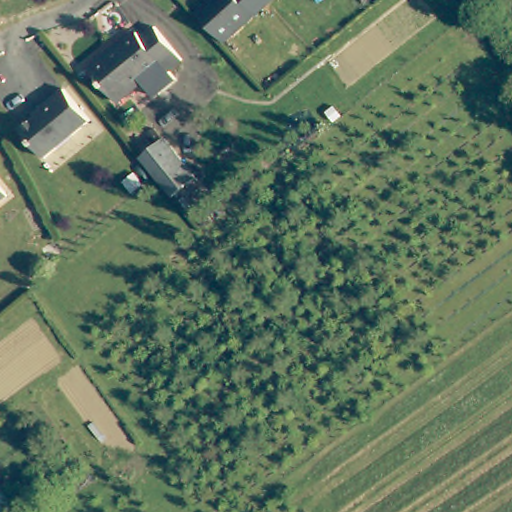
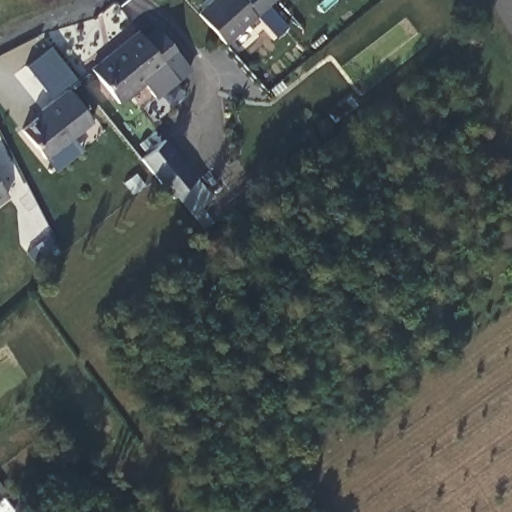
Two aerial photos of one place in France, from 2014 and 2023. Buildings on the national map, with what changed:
unchanged [(196,13),(212,0),(273,0),(222,43),(196,13)]
unchanged [(108,55),(139,31),(143,36),(156,27),(183,61),(169,71),(165,66),(116,101),(87,64),(105,52),(108,55)]
new [(50,98),(25,66),(50,46),(76,79),(65,87),(50,98)]
unchanged [(43,111),(39,106),(65,87),(89,118),(43,154),(23,128),(43,111)]
unchanged [(172,197),(157,178),(140,157),(160,141),(177,162),(193,181),(172,197)]
unchanged [(0,202),(0,190),(6,197),(0,202)]
unchanged [(0,506),(0,487),(9,499),(0,506)]

